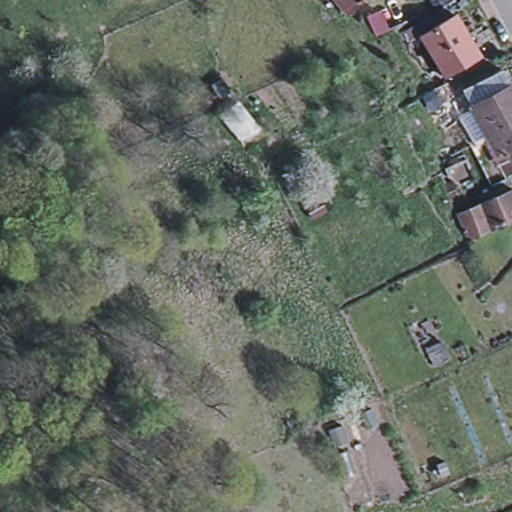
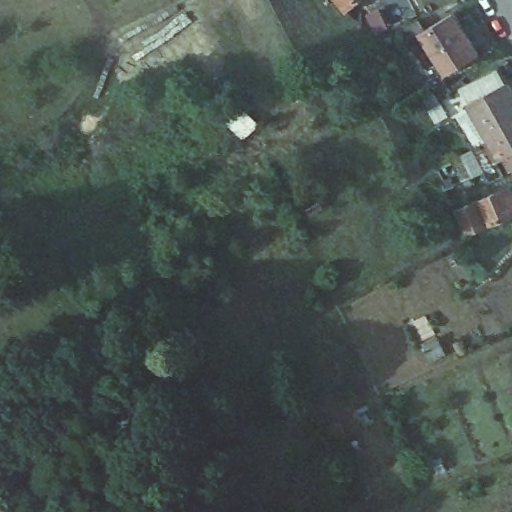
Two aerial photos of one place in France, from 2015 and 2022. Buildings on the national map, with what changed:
unchanged [(345,12),(336,0),(359,0),(345,12)]
unchanged [(479,55),(444,76),(419,34),(406,42),(399,31),(419,21),(425,30),(453,13),(479,55)]
unchanged [(462,90),(479,82),(477,79),(499,67),(509,85),(512,91),(512,149),(497,156),(470,105),(462,90)]
unchanged [(512,170),(506,173),(497,156),(512,149),(512,170)]
unchanged [(455,210),(510,187),(512,190),(512,216),(500,221),(467,236),(455,210)]

